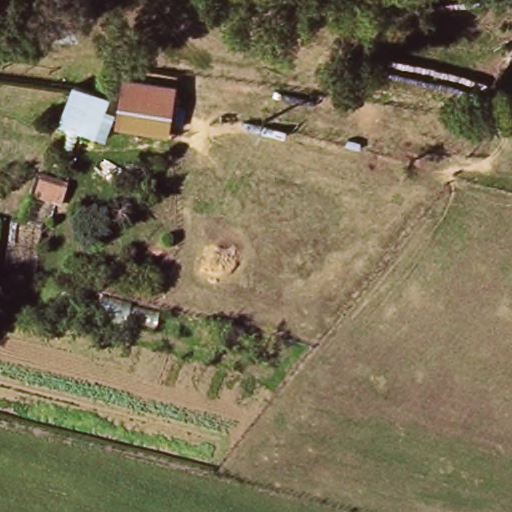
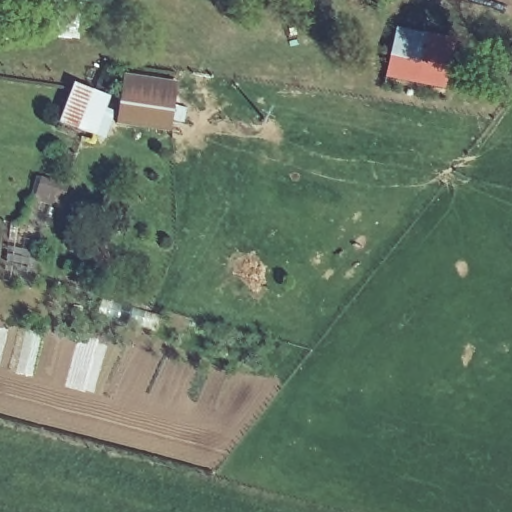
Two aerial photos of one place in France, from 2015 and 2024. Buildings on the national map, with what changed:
new [(454,40),(443,90),(384,79),(394,29),(454,40)]
unchanged [(118,130),(124,77),(177,85),(174,132),(118,130)]
unchanged [(59,126),(74,86),(111,99),(101,139),(59,126)]
unchanged [(69,185),(61,210),(33,202),(41,176),(69,185)]

